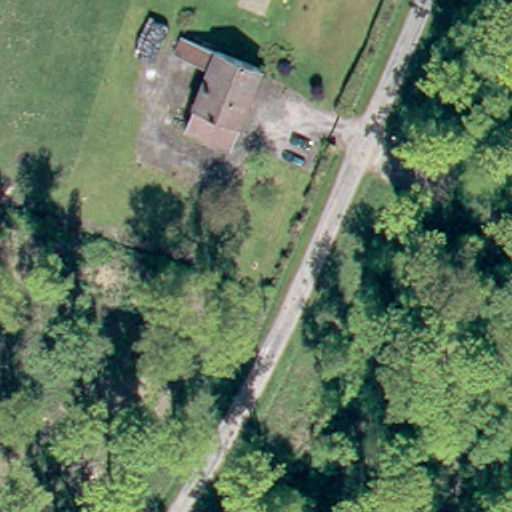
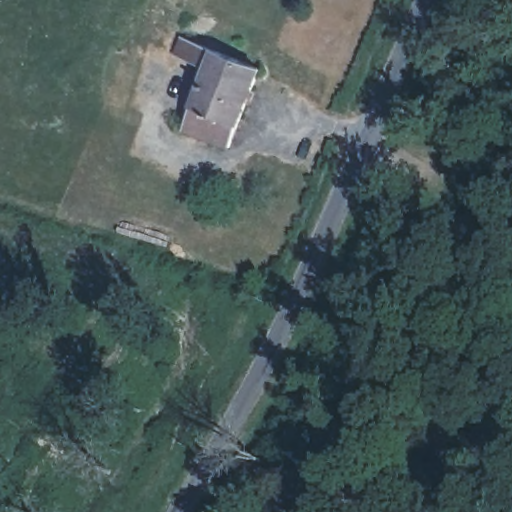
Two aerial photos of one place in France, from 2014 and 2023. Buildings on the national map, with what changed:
unchanged [(202,89),(209,70),(192,64),(194,59),(176,50),(184,34),(217,49),(262,68),(227,149),(222,146),(185,129),(192,107),(202,89)]

